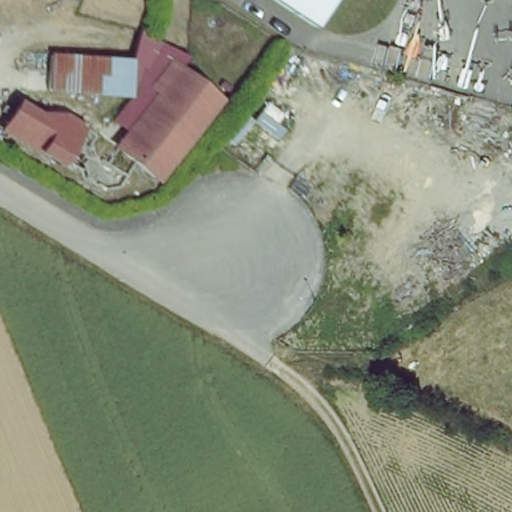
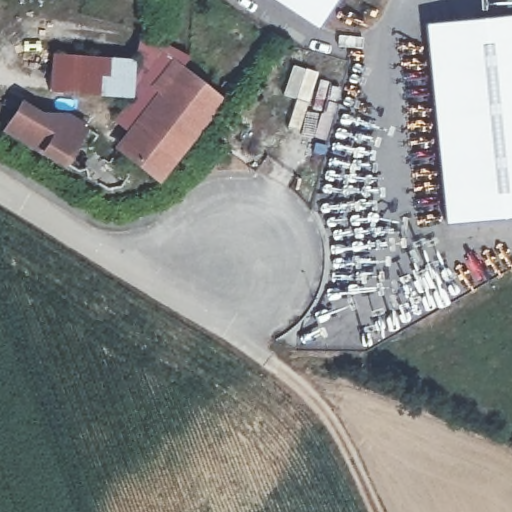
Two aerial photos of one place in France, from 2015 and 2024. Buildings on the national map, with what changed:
unchanged [(309,21),(275,0),(333,0),(316,26),(309,21)]
new [(424,24),(512,14),(512,217),(444,223),(424,24)]
unchanged [(117,125),(134,100),(135,60),(142,32),(174,56),(148,90),(153,96),(125,133),(117,125)]
unchanged [(135,60),(134,100),(54,94),(56,54),(135,60)]
unchanged [(227,98),(160,187),(114,148),(125,133),(153,96),(148,90),(174,56),(227,98)]
unchanged [(42,112),(68,113),(89,125),(64,168),(0,131),(21,99),(42,112)]

